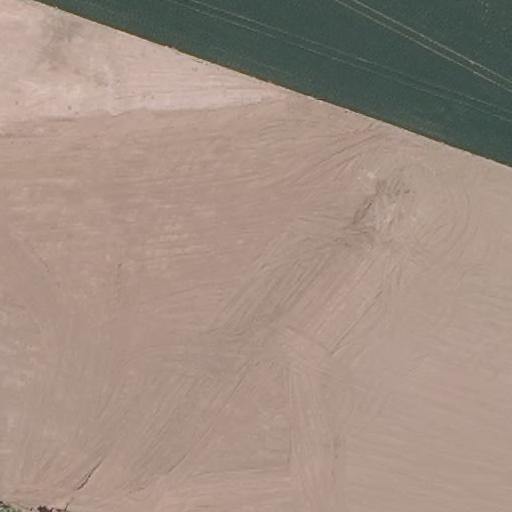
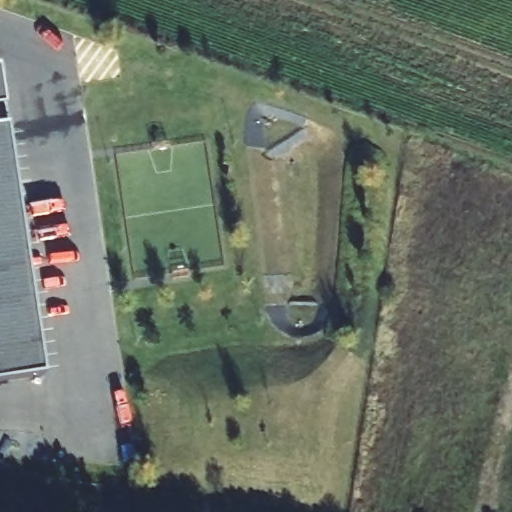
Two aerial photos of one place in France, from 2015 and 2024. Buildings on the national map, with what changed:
new [(0,379),(0,69),(50,371),(0,379)]

